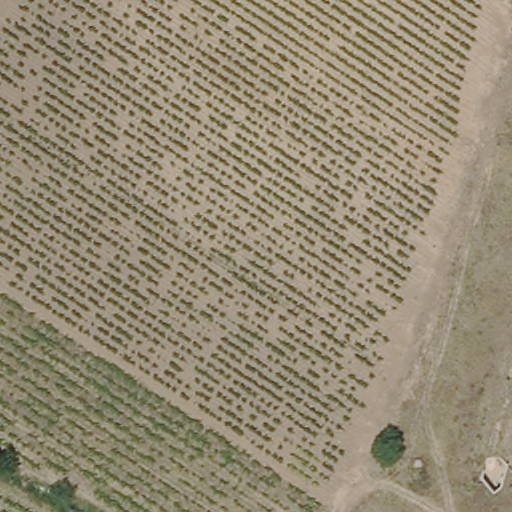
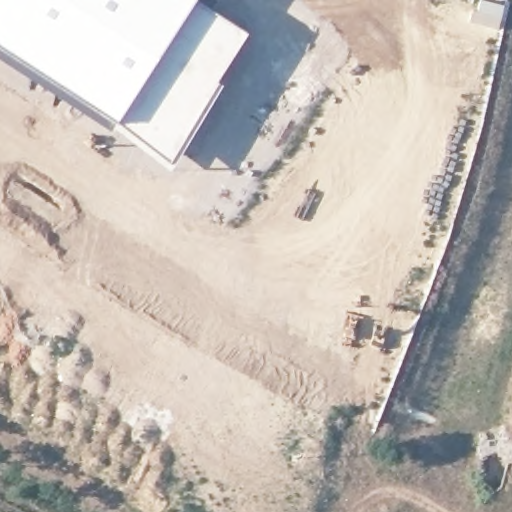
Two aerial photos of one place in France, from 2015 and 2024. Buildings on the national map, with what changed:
new [(0,45),(0,0),(194,0),(116,121),(88,101),(0,45)]
new [(202,0),(249,32),(218,81),(221,82),(194,130),(171,164),(116,121),(194,0),(202,0)]

